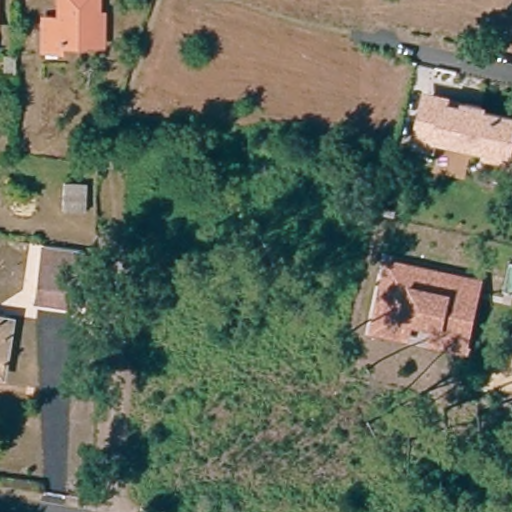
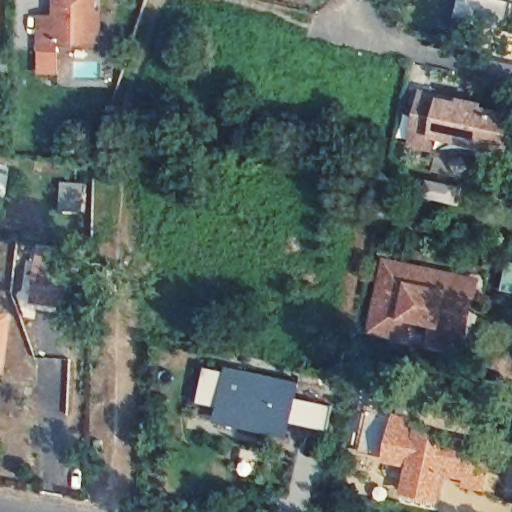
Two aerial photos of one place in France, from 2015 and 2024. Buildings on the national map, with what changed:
unchanged [(54,46),(54,56),(35,56),(36,33),(36,20),(53,20),(53,0),(90,0),(90,11),(96,11),(95,48),(81,46),(54,46)]
new [(505,33),(455,20),(461,0),(496,0),(511,4),(505,33)]
unchanged [(489,102),(488,106),(512,110),(512,145),(509,158),(480,151),(483,145),(414,130),(425,90),(489,102)]
unchanged [(76,209),(56,206),(59,180),(80,182),(76,209)]
demolished [(0,245),(7,246),(5,264),(0,263),(0,245)]
unchanged [(71,304),(33,302),(35,248),(74,250),(71,304)]
unchanged [(484,279),(468,353),(430,345),(432,332),(412,328),(410,341),(370,333),(385,258),(484,279)]
unchanged [(508,264),(512,264),(512,295),(501,293),(508,264)]
unchanged [(0,319),(4,320),(0,345),(0,319)]
new [(227,372),(229,366),(303,383),(300,398),(335,407),(330,431),(295,423),(291,439),(216,423),(220,407),(200,403),(207,368),(227,372)]
new [(395,415),(415,418),(412,424),(448,435),(505,455),(497,478),(495,477),(489,494),(461,486),(462,482),(447,478),(440,503),(401,495),(406,468),(383,462),(395,415)]

